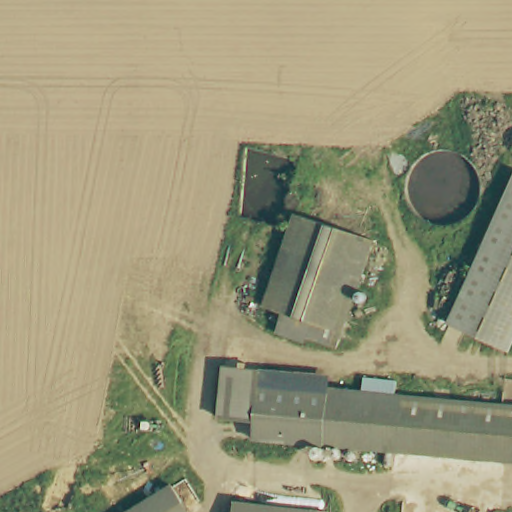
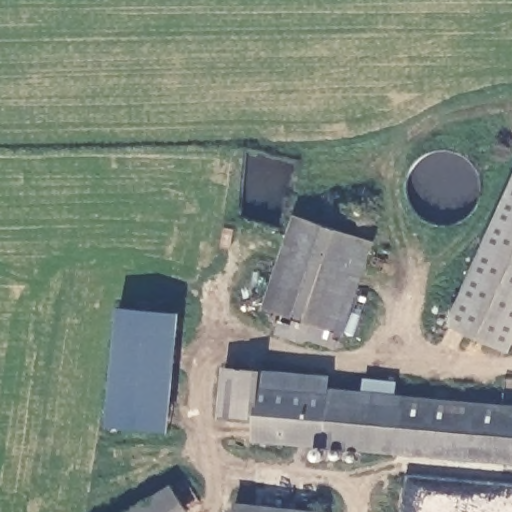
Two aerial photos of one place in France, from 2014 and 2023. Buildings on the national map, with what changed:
unchanged [(449,322),(512,190),(512,347),(510,350),(449,322)]
unchanged [(371,241),(338,343),(331,341),(329,347),(304,339),(308,325),(265,310),(295,216),(371,241)]
new [(181,312),(169,432),(108,426),(119,306),(181,312)]
unchanged [(258,419),(230,417),(219,415),(224,360),(237,361),(266,364),(263,387),(386,398),(387,388),(400,390),(399,399),(512,411),(512,468),(256,442),(258,419)]
unchanged [(189,508),(184,512),(138,512),(172,486),(189,508)]
unchanged [(331,505),(331,512),(238,512),(240,494),(331,505)]

